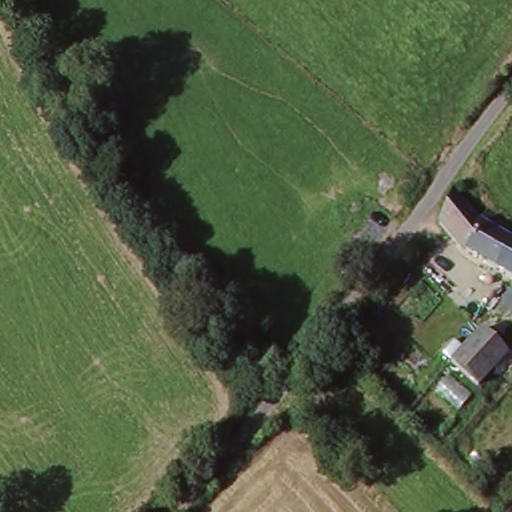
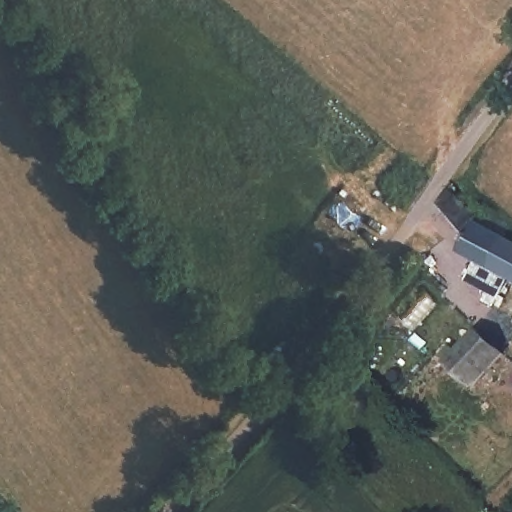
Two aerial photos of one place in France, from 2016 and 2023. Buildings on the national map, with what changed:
unchanged [(472,221),(505,242),(497,249),(512,259),(512,294),(449,260),(430,235),(443,201),(468,227),(472,221)]
unchanged [(475,328),(503,350),(473,387),(445,364),(475,328)]

